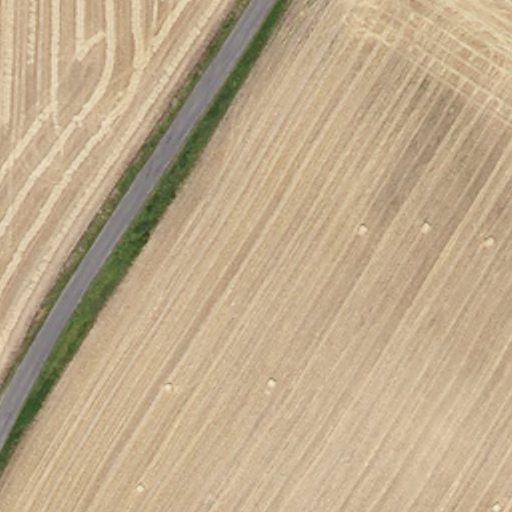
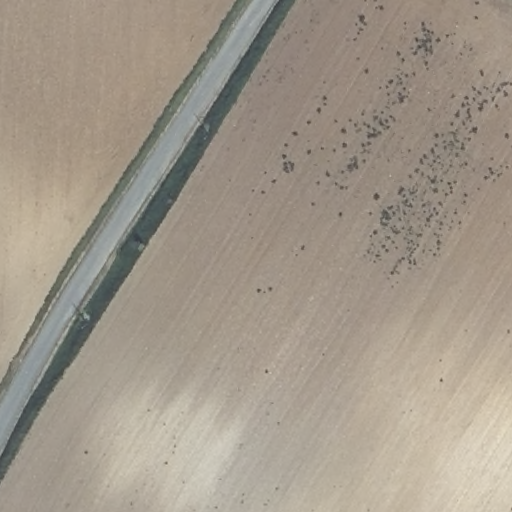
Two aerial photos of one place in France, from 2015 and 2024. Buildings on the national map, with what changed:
[]

